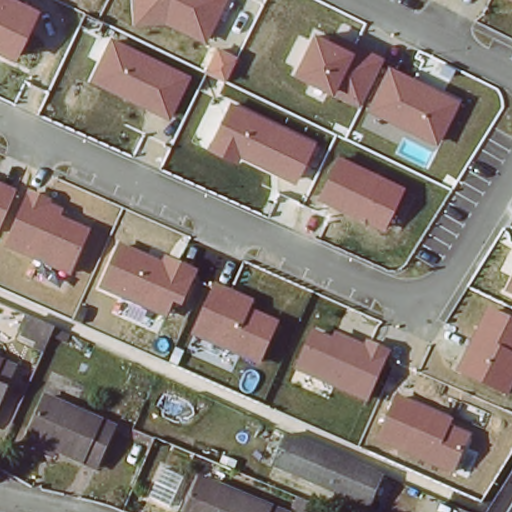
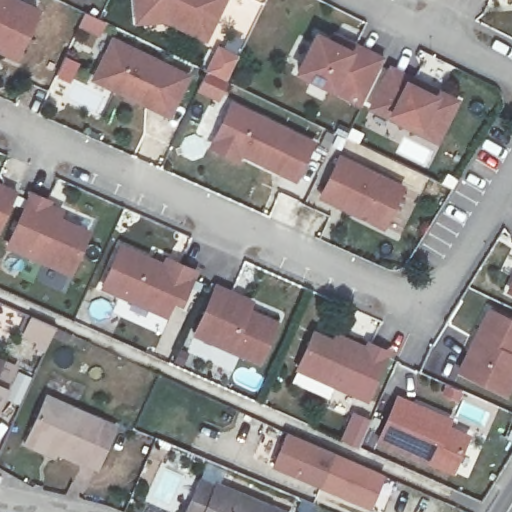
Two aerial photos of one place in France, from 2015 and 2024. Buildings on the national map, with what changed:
unchanged [(16,59),(0,52),(0,0),(23,0),(40,8),(16,59)]
unchanged [(164,22),(135,24),(134,0),(225,0),(205,42),(164,22)]
unchanged [(332,40),(336,34),(385,56),(360,106),(333,94),(292,75),(315,33),(332,40)]
unchanged [(190,76),(171,119),(90,80),(111,38),(190,76)]
unchanged [(438,145),(367,110),(388,66),(460,100),(438,145)]
unchanged [(295,182),(240,157),(237,162),(208,148),(232,102),(315,141),(295,182)]
unchanged [(383,230),(318,200),(338,155),(404,186),(383,230)]
unchanged [(0,229),(0,184),(15,191),(0,229)]
unchanged [(70,276),(5,250),(28,191),(53,202),(50,206),(65,211),(62,217),(90,230),(70,276)]
unchanged [(181,308),(173,305),(167,318),(100,290),(118,244),(163,263),(165,257),(196,271),(181,308)]
unchanged [(512,277),(512,296),(505,293),(512,277)]
unchanged [(259,364),(192,335),(215,284),(255,301),(250,309),(279,322),(259,364)]
unchanged [(488,307),(512,319),(512,387),(507,396),(456,371),(488,307)]
unchanged [(367,402),(296,372),(314,331),(333,338),(335,333),(363,345),(366,341),(390,351),(367,402)]
unchanged [(15,367),(0,401),(0,360),(15,367)]
unchanged [(26,444),(30,437),(49,395),(118,429),(98,469),(58,450),(54,458),(26,444)]
unchanged [(453,474),(376,443),(396,397),(452,419),(449,426),(468,435),(453,474)]
unchanged [(365,512),(271,468),(286,433),(380,478),(365,512)]
unchanged [(285,512),(199,512),(213,480),(285,512)]

